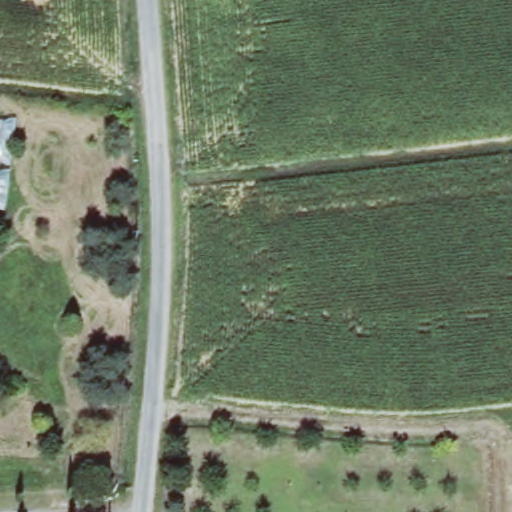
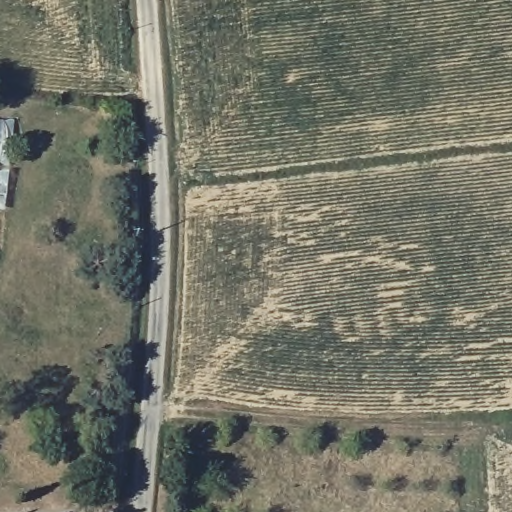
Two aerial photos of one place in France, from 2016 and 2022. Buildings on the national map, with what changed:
unchanged [(0,162),(0,120),(14,122),(7,163),(0,162)]

